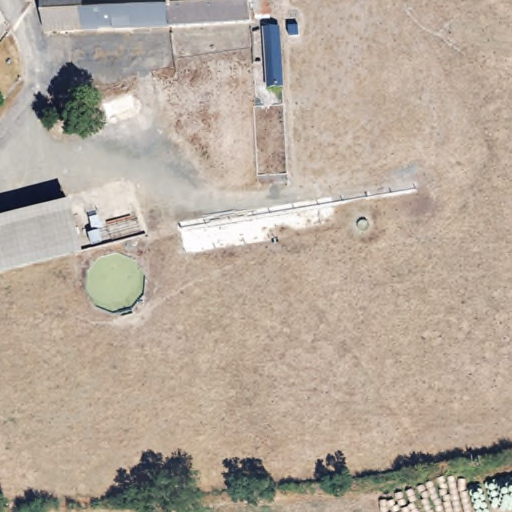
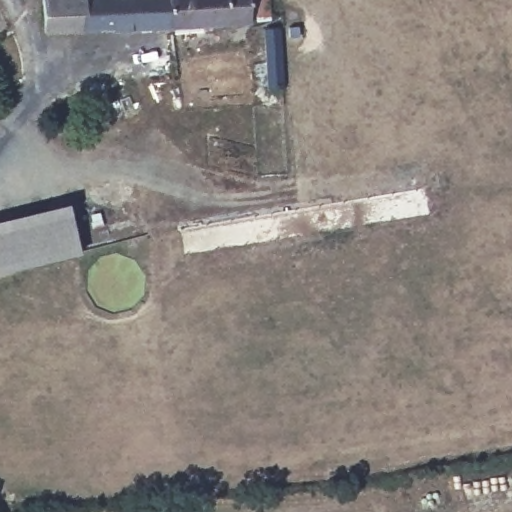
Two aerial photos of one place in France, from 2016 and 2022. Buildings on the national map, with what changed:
unchanged [(43,0),(262,0),(264,21),(248,22),(248,27),(45,37),(43,0)]
unchanged [(279,32),(285,90),(256,92),(250,33),(279,32)]
unchanged [(59,198),(63,209),(69,228),(74,245),(0,269),(0,217),(59,198)]

